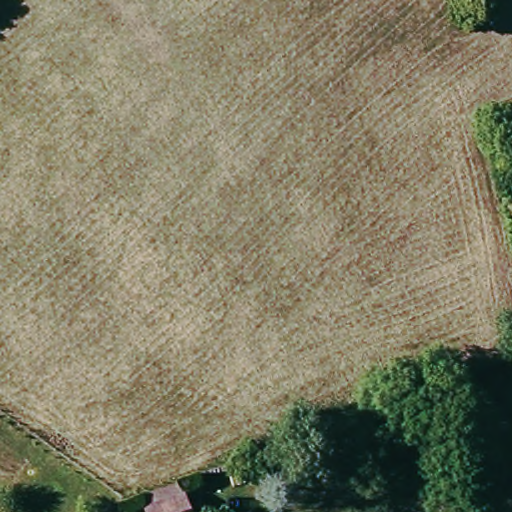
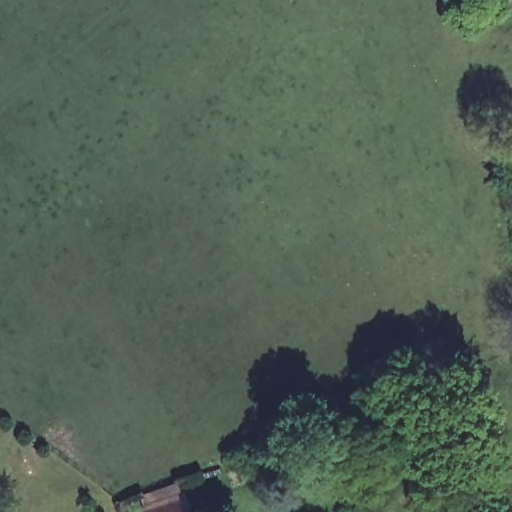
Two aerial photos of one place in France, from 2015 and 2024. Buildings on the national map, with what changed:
unchanged [(172,475),(185,512),(153,512),(144,485),(172,475)]

